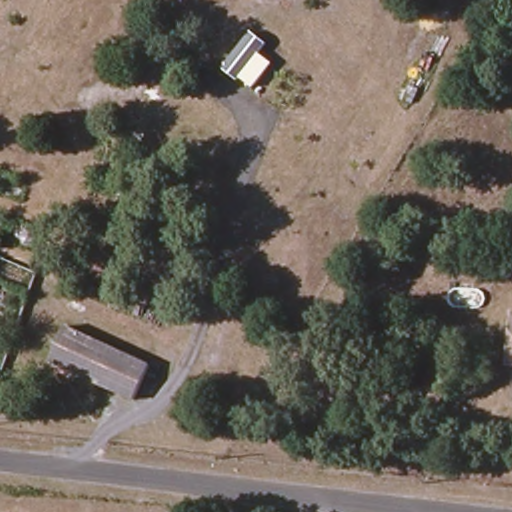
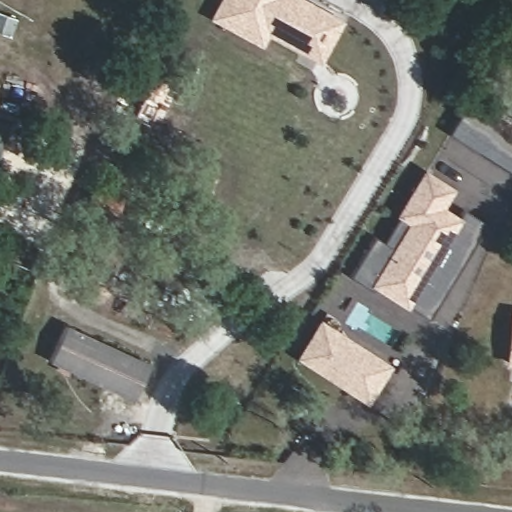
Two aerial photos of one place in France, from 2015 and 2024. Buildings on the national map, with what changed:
new [(320,65),(267,36),(260,44),(252,40),(251,42),(207,19),(218,0),(307,0),(343,20),(320,65)]
new [(512,141),(512,177),(444,136),(460,110),(512,141)]
new [(9,126),(0,154),(0,123),(9,126)]
new [(368,234),(378,239),(418,170),(445,185),(434,203),(452,214),(458,204),(483,218),(427,314),(372,282),(368,288),(345,275),(368,234)]
unchanged [(66,325),(149,365),(134,399),(49,360),(66,325)]
new [(316,325),(385,365),(364,400),(295,359),(316,325)]
unchanged [(512,327),(512,367),(507,366),(512,327)]

